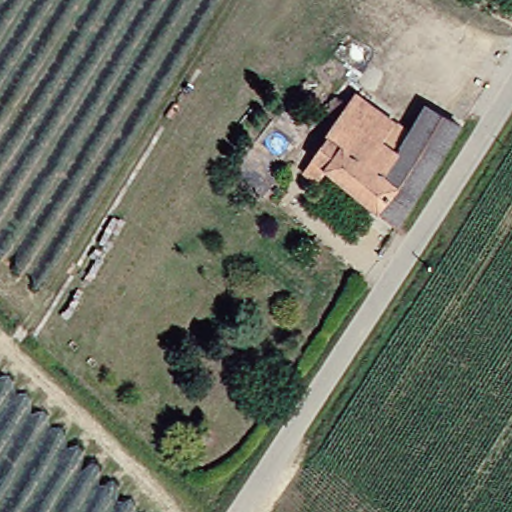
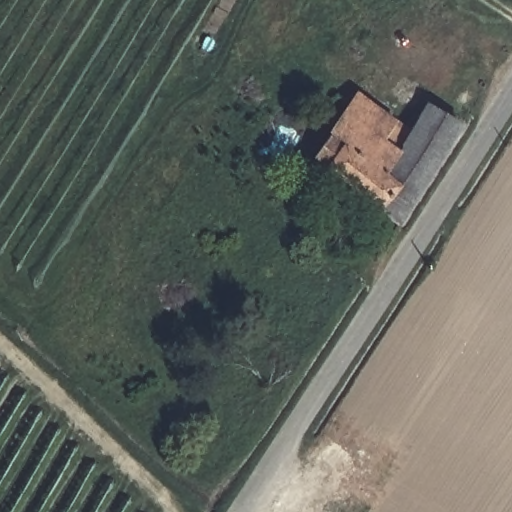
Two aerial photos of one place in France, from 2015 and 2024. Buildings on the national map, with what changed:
unchanged [(391,222),(328,176),(321,188),(296,170),(321,131),(310,123),(330,92),(343,102),(351,90),(406,130),(421,107),(452,124),(391,222)]

